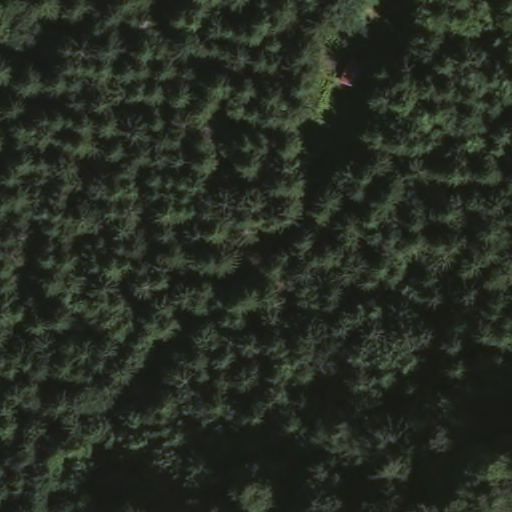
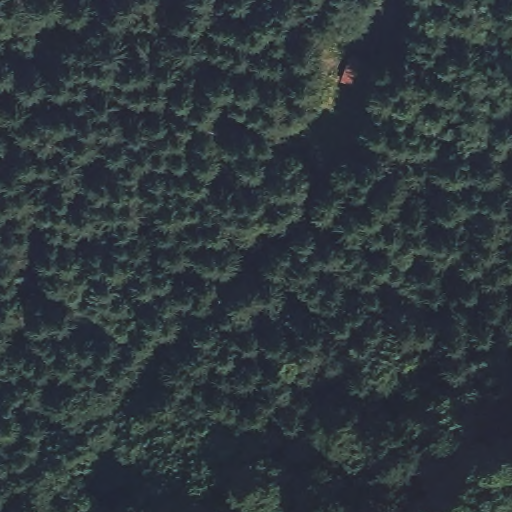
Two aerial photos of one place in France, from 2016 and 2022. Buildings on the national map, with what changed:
unchanged [(370,61),(365,91),(340,85),(348,56),(370,61)]

